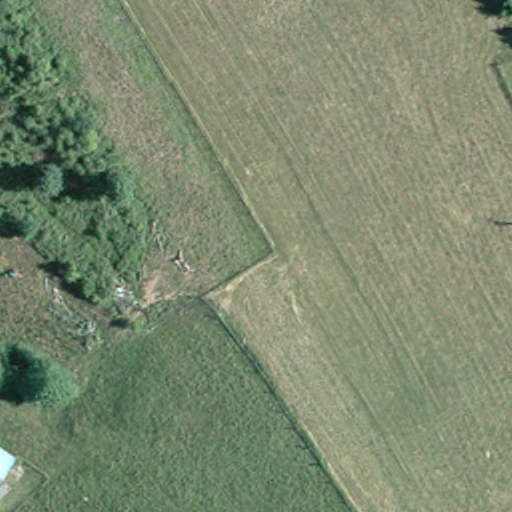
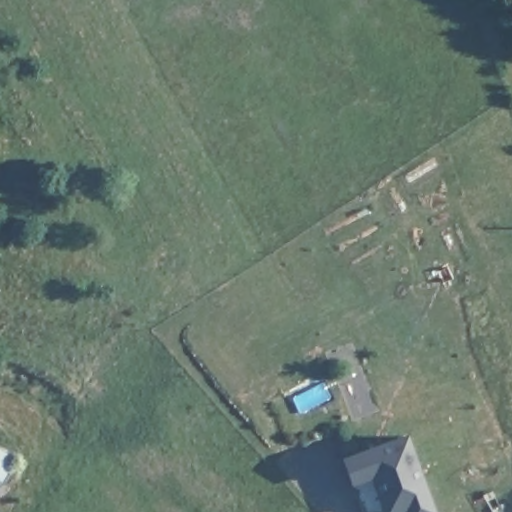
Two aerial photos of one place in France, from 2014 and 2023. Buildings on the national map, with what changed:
new [(435,512),(405,512),(404,507),(388,512),(382,512),(369,476),(349,483),(340,454),(407,433),(435,512)]

